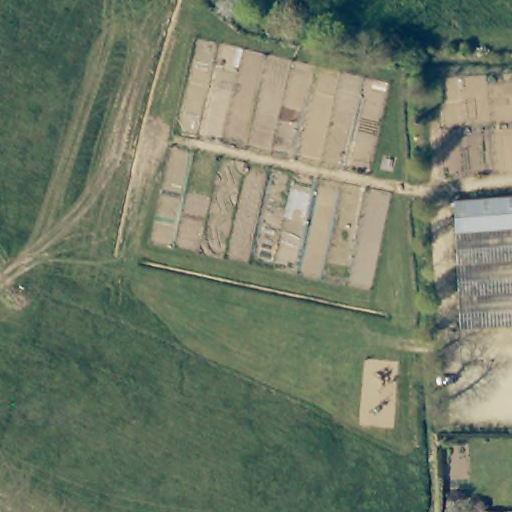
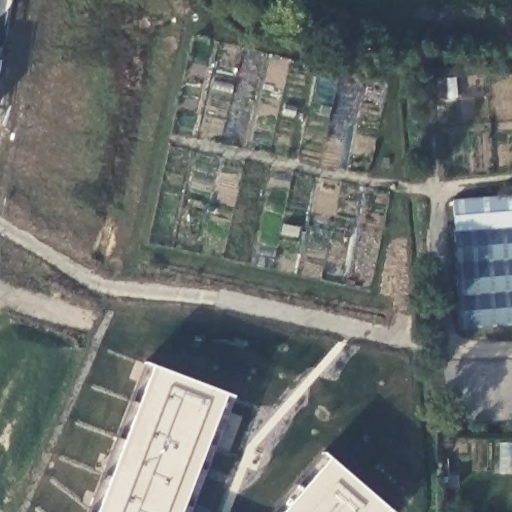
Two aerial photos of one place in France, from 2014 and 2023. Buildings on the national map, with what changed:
new [(4,0),(0,25),(0,0),(4,0)]
demolished [(421,0),(466,0),(466,1),(421,7),(421,0)]
unchanged [(512,228),(453,233),(451,200),(512,196),(512,228)]
unchanged [(512,326),(460,328),(453,233),(512,228),(512,326)]
new [(214,398),(177,510),(180,512),(99,512),(141,365),(214,398)]
new [(326,453),(386,501),(377,512),(274,512),(326,453)]

